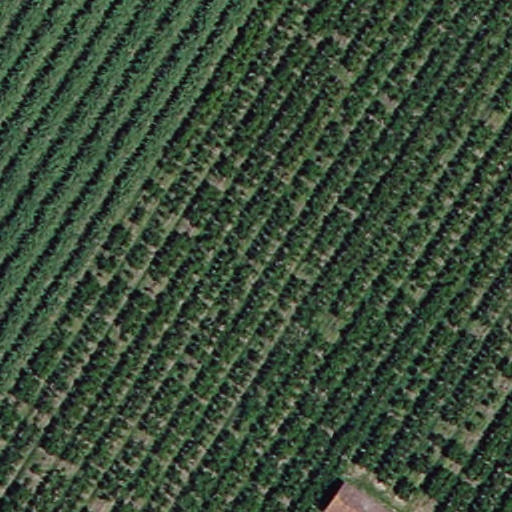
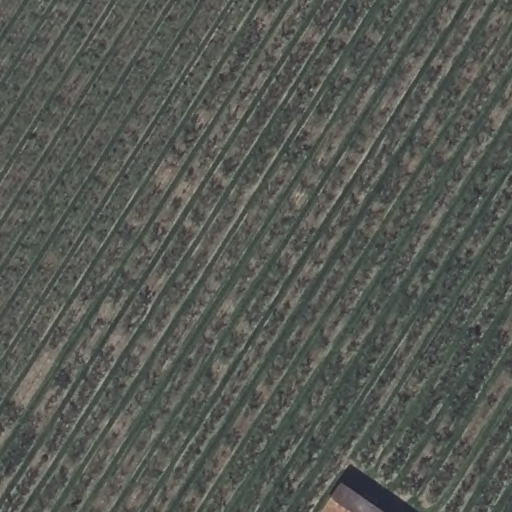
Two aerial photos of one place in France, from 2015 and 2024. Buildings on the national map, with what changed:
unchanged [(374,512),(323,512),(319,510),(338,486),(374,512)]

